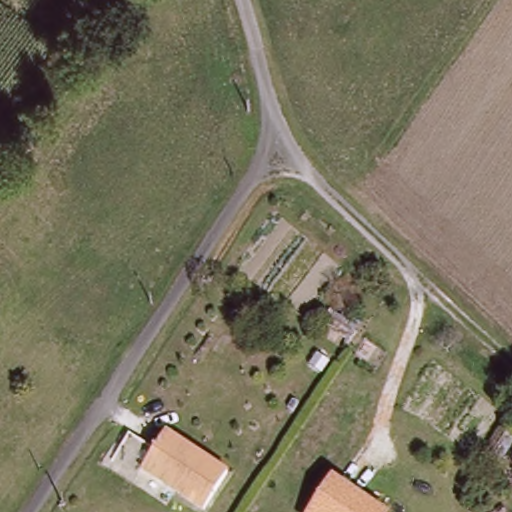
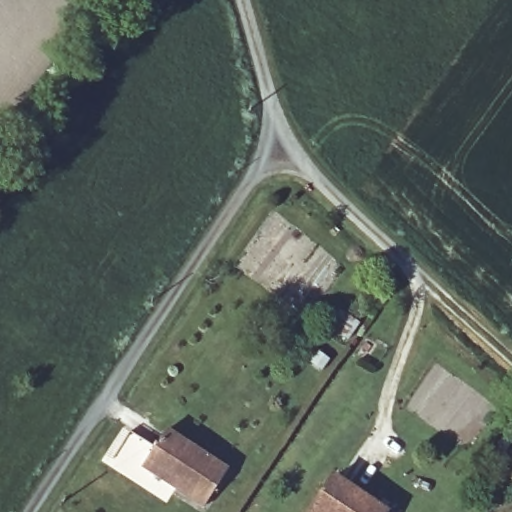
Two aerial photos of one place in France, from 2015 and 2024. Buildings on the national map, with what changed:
unchanged [(224,472),(201,510),(139,469),(164,434),(224,472)]
unchanged [(379,512),(306,512),(326,478),(379,512)]

